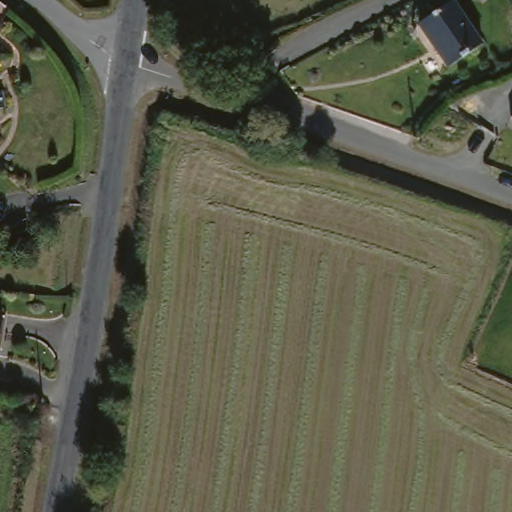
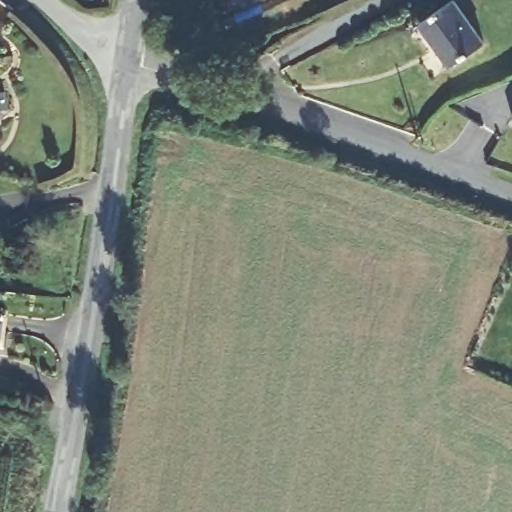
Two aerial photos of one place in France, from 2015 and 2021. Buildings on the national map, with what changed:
unchanged [(431,17),(455,0),(467,0),(493,33),(460,57),(431,17)]
unchanged [(10,104),(0,105),(0,86),(6,86),(10,104)]
unchanged [(5,350),(0,350),(0,305),(10,306),(5,350)]

